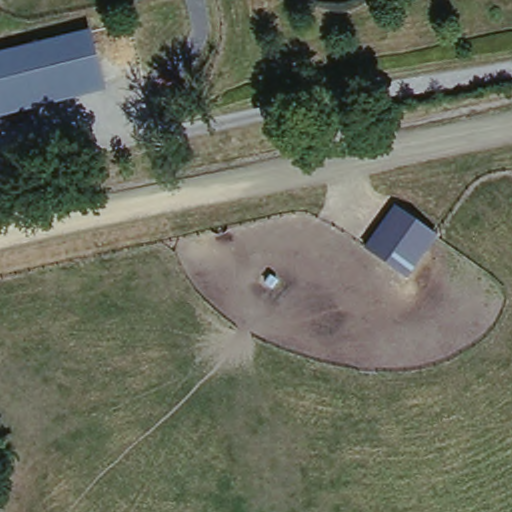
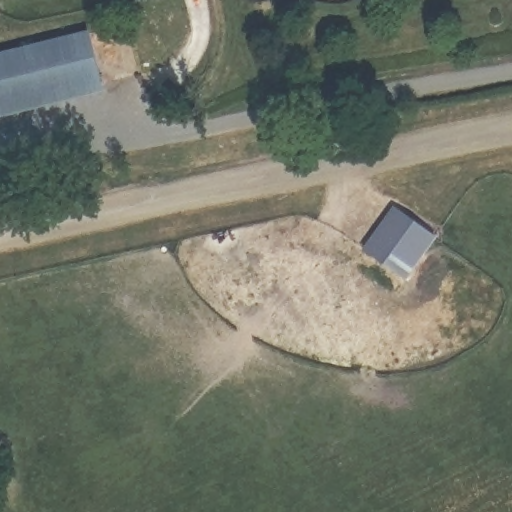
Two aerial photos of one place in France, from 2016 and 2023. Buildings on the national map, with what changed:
unchanged [(105,91),(0,116),(0,53),(93,31),(105,91)]
unchanged [(392,202),(437,231),(407,276),(363,245),(392,202)]

